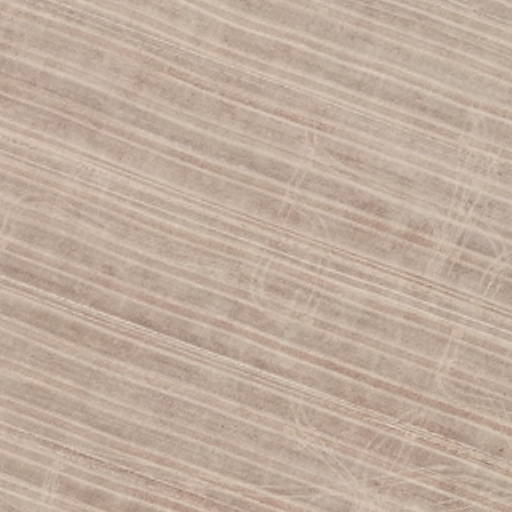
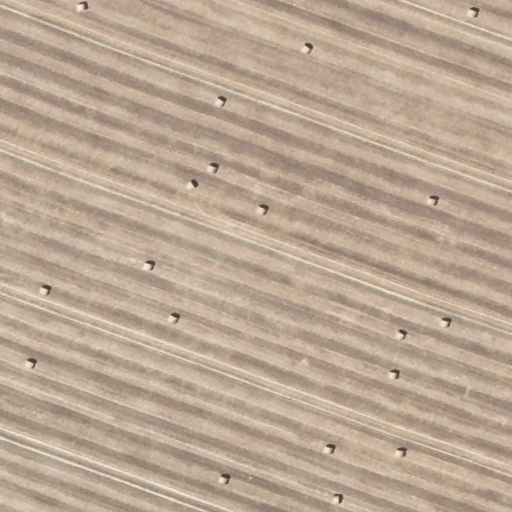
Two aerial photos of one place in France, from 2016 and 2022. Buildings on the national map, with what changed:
[]

